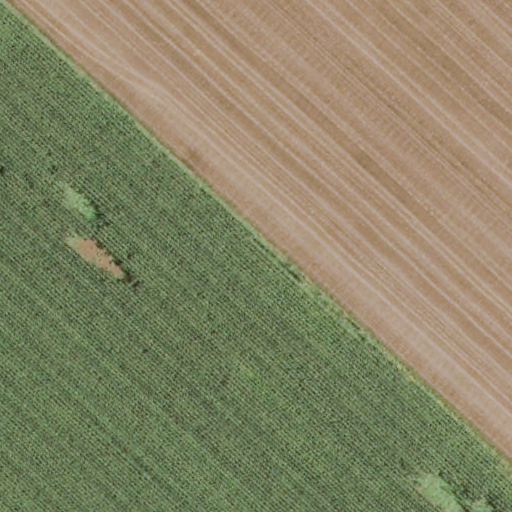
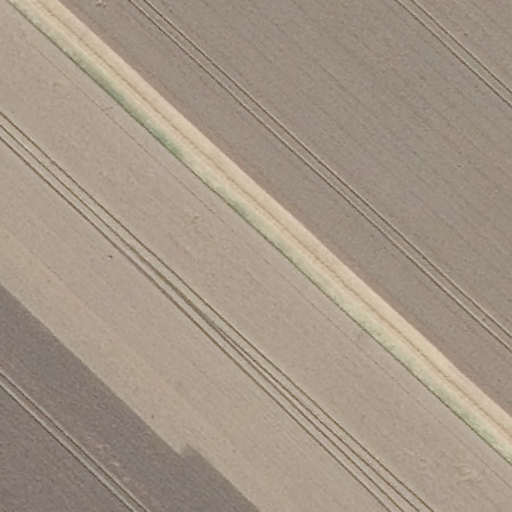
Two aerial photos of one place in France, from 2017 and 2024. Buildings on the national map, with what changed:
[]

